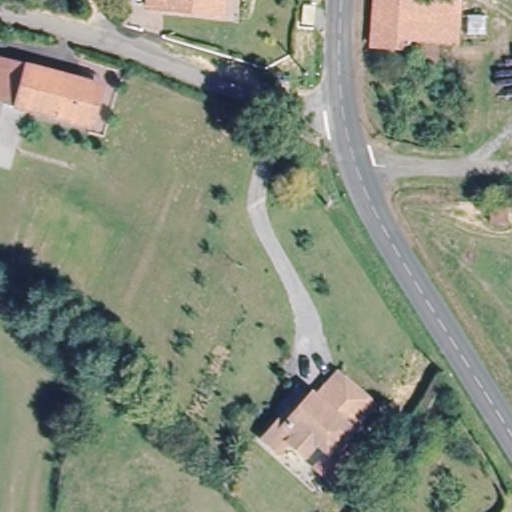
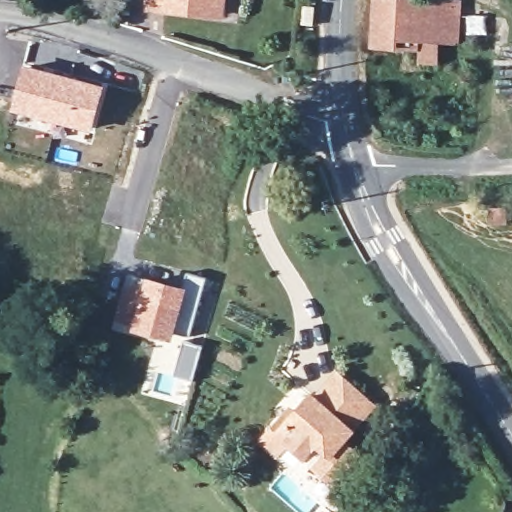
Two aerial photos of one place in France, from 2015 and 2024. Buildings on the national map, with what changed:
unchanged [(163,10),(145,8),(146,0),(226,0),(225,16),(163,10)]
unchanged [(419,37),(392,34),(391,44),(370,42),(375,0),(457,0),(454,40),(440,39),(435,38),(433,63),(417,62),(419,37)]
unchanged [(0,56),(23,62),(13,103),(0,99),(0,56)]
unchanged [(23,62),(102,83),(91,124),(25,107),(13,103),(23,62)]
unchanged [(25,107),(14,150),(10,163),(9,167),(0,165),(0,99),(13,103),(25,107)]
new [(124,285),(143,290),(147,276),(185,287),(188,272),(207,277),(191,333),(176,331),(174,338),(133,327),(115,319),(124,285)]
unchanged [(302,460),(285,446),(277,457),(262,444),(281,422),(288,413),(293,417),(308,399),(312,402),(325,387),(334,377),(370,407),(358,422),(339,444),(355,457),(331,485),(315,472),(328,457),(314,446),(302,460)]

